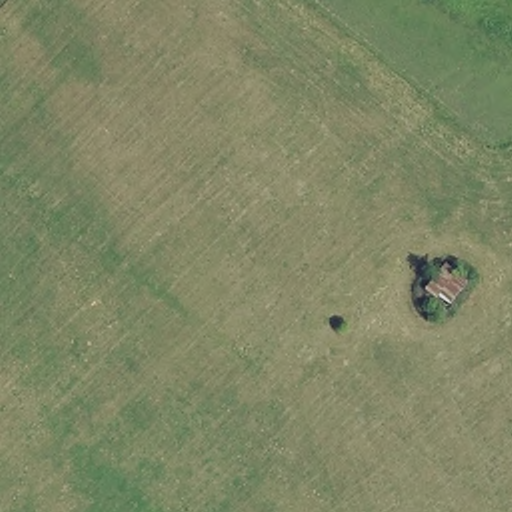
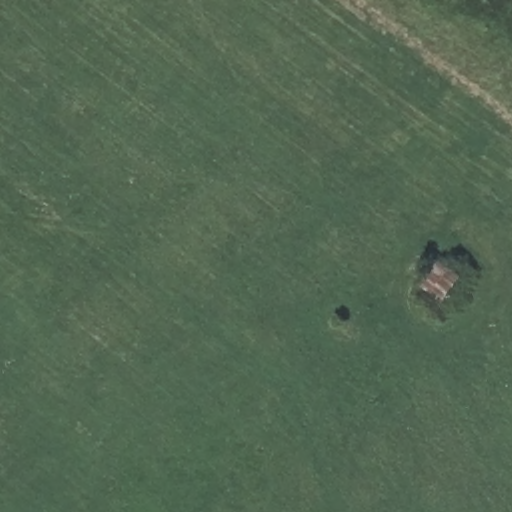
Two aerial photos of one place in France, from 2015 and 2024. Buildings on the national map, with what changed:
unchanged [(438,259),(463,274),(439,305),(415,287),(438,259)]

